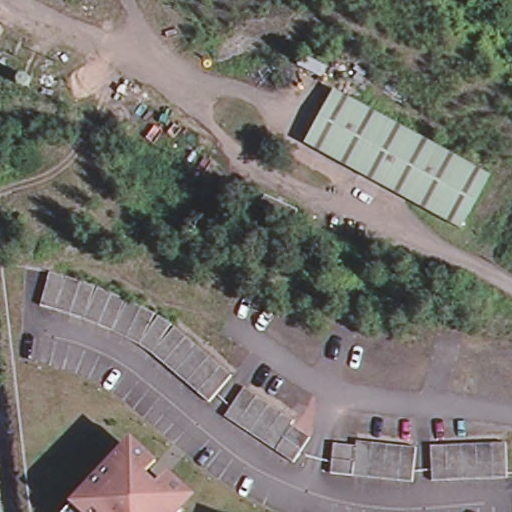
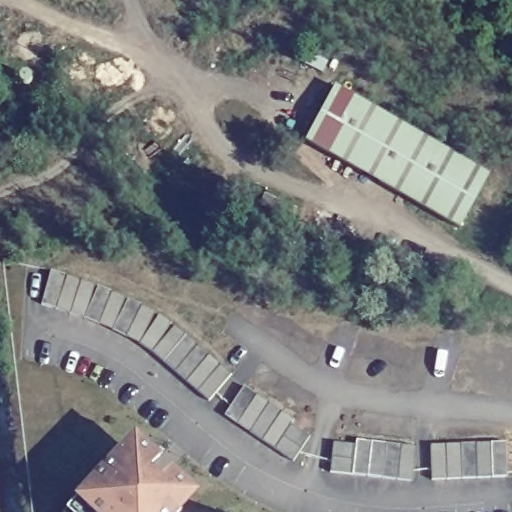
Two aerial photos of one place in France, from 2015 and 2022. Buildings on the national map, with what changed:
unchanged [(334,93),(487,177),(459,230),(304,147),(334,93)]
unchanged [(52,307),(39,303),(48,270),(62,273),(52,307)]
unchanged [(52,307),(64,274),(92,283),(81,317),(52,307)]
unchanged [(81,317),(95,285),(152,311),(138,342),(81,317)]
unchanged [(138,342),(156,313),(168,321),(149,351),(138,342)]
unchanged [(206,399),(149,351),(172,323),(229,372),(206,399)]
unchanged [(291,417),(289,422),(308,434),(291,459),(222,413),(242,384),(291,417)]
unchanged [(414,444),(410,478),(328,470),(331,440),(353,442),(354,437),(414,444)]
unchanged [(504,473),(504,479),(483,480),(429,482),(428,447),(503,445),(504,473)]
unchanged [(126,454),(186,509),(183,512),(73,512),(126,454)]

